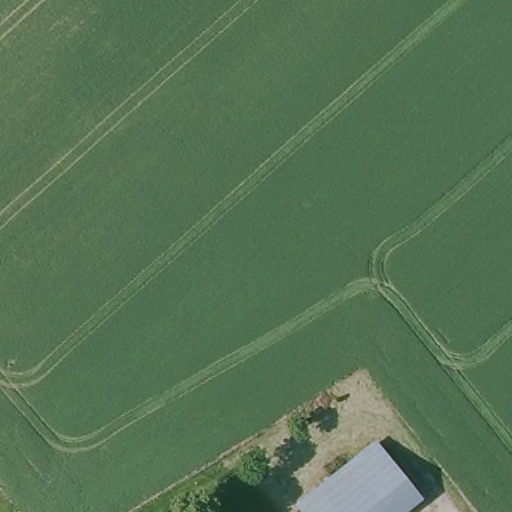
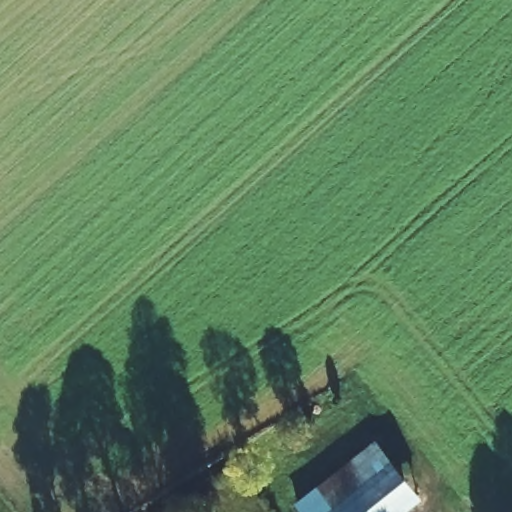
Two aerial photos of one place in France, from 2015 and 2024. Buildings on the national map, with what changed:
unchanged [(420,495),(400,512),(311,512),(385,452),(420,495)]

